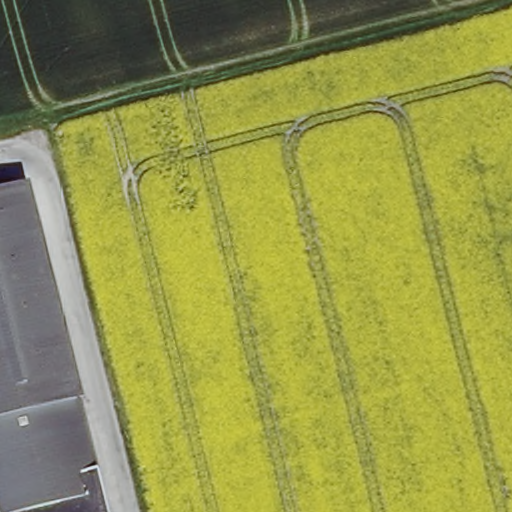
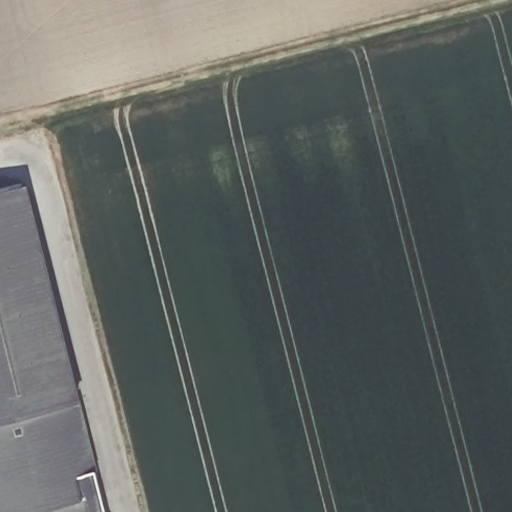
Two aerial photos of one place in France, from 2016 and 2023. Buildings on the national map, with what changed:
unchanged [(65,512),(64,507),(42,512),(2,512),(0,511),(0,182),(24,176),(85,418),(97,462),(109,512),(65,512)]

